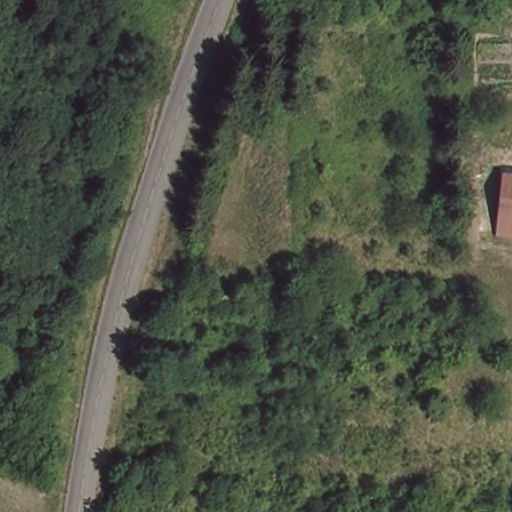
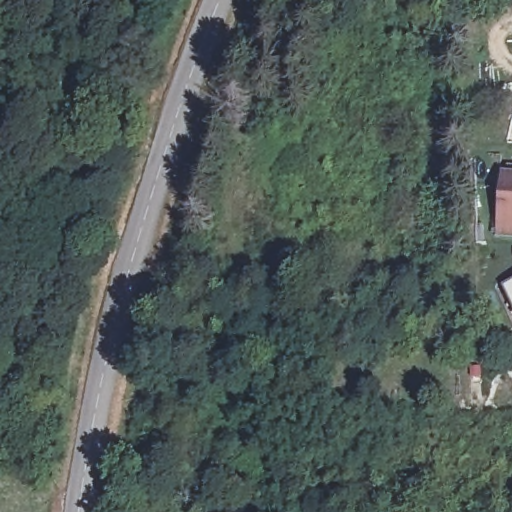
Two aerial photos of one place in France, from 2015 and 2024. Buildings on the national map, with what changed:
unchanged [(502,172),(512,173),(512,240),(495,238),(502,172)]
new [(500,284),(512,279),(512,310),(500,284)]

